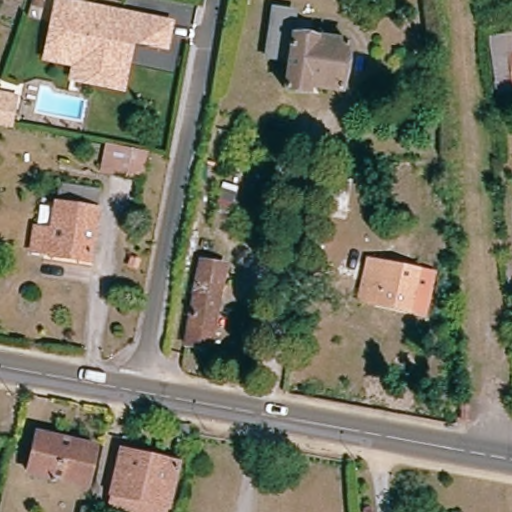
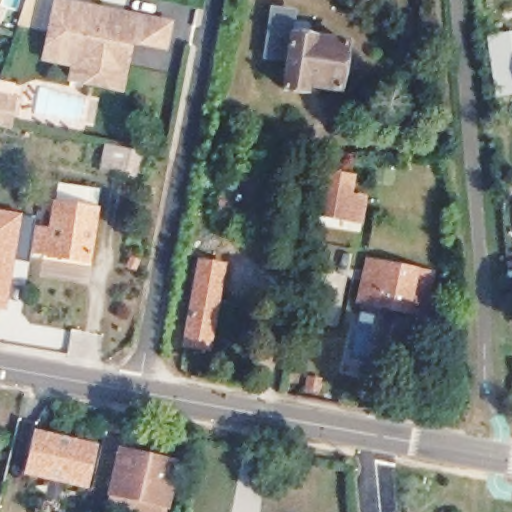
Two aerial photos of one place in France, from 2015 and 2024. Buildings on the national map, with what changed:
unchanged [(75,63),(45,57),(47,42),(55,0),(60,0),(170,20),(165,47),(132,41),(128,62),(124,86),(87,79),(72,76),(75,63)]
unchanged [(351,96),(319,91),(317,99),(295,95),(300,66),(277,62),(281,35),(285,15),(305,18),(301,41),(303,41),(303,40),(358,48),(351,96)]
unchanged [(512,57),(512,90),(495,92),(491,59),(512,57)]
unchanged [(101,159),(103,148),(144,156),(140,182),(109,176),(99,174),(101,159)]
new [(328,214),(318,212),(326,168),(352,172),(351,183),(355,183),(353,194),(366,196),(360,219),(341,216),(340,221),(327,219),(328,214)]
unchanged [(98,194),(96,212),(99,213),(90,263),(49,256),(50,249),(34,246),(37,221),(54,223),(57,204),(61,205),(64,187),(98,194)]
unchanged [(220,206),(231,209),(225,230),(215,227),(220,206)]
new [(37,221),(34,246),(29,264),(16,261),(7,311),(0,311),(0,210),(37,217),(37,221)]
unchanged [(409,313),(376,305),(361,302),(370,260),(385,264),(418,272),(409,313)]
unchanged [(226,266),(211,350),(187,346),(201,262),(226,266)]
unchanged [(96,447),(87,487),(29,474),(37,435),(96,447)]
unchanged [(176,467),(166,509),(114,495),(125,454),(176,467)]

